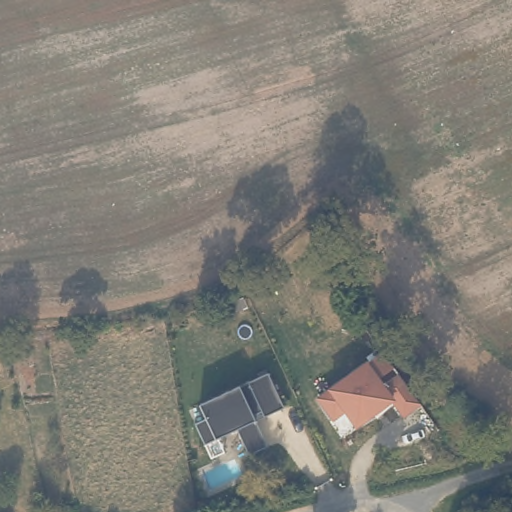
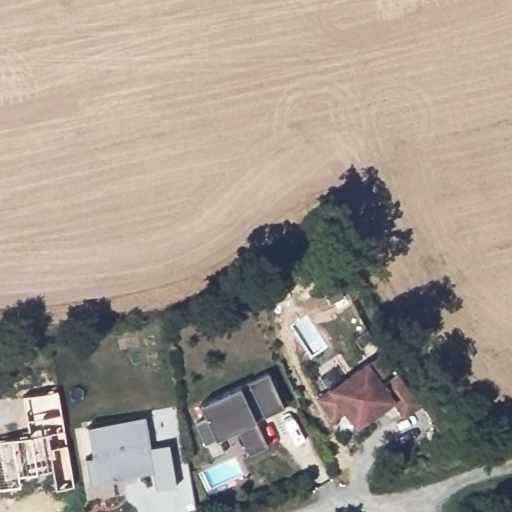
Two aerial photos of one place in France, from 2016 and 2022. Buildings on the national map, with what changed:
unchanged [(421,405),(404,418),(393,403),(358,430),(346,411),(335,421),(318,398),(384,353),(395,366),(381,377),(386,385),(401,376),(421,405)]
unchanged [(284,408),(260,420),(270,446),(247,456),(236,430),(214,440),(199,405),(269,373),(284,408)]
new [(93,457),(88,426),(145,416),(151,447),(169,444),(177,486),(156,490),(153,472),(90,483),(86,458),(93,457)]

